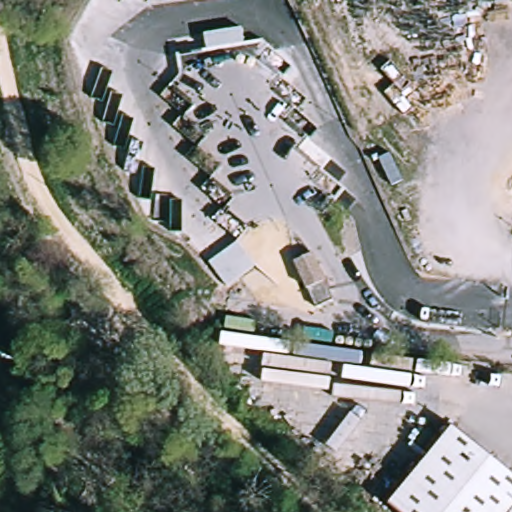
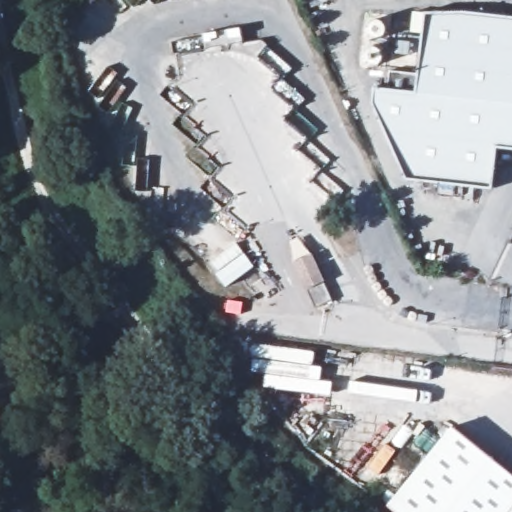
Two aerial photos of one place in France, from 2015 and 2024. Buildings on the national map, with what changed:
new [(493,187),(407,179),(372,102),(375,86),(388,88),(390,73),(417,77),(423,13),(455,10),(512,17),(512,148),(496,146),(493,187)]
new [(362,65),(366,17),(385,19),(380,65),(362,65)]
unchanged [(310,251),(333,299),(316,307),(293,260),(310,251)]
unchanged [(458,425),(512,469),(512,512),(400,512),(390,504),(458,425)]

